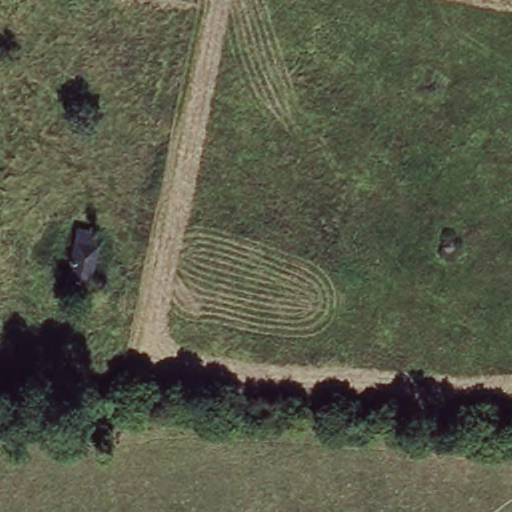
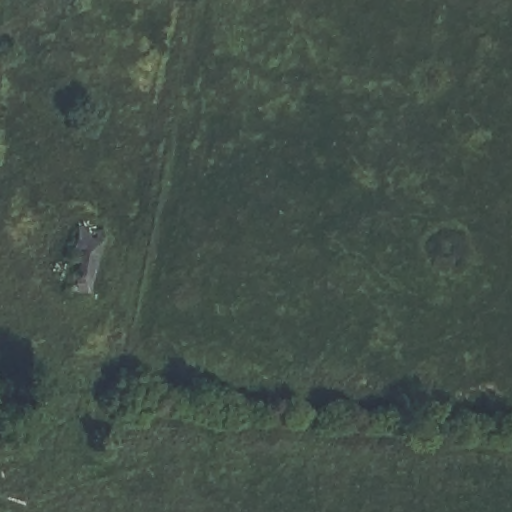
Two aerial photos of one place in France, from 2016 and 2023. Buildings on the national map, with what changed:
unchanged [(101,230),(87,289),(64,285),(77,224),(101,230)]

